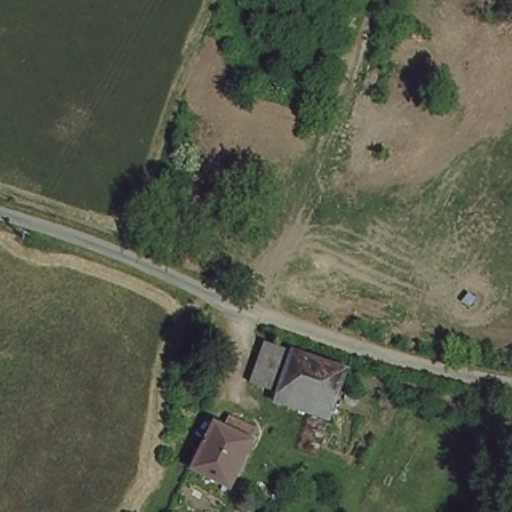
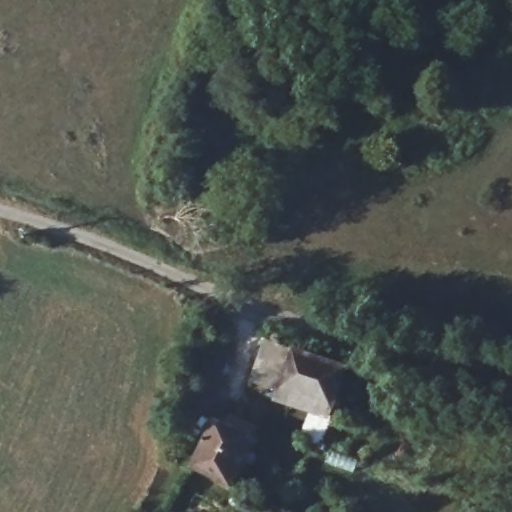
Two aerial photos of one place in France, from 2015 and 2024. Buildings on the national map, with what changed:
unchanged [(397,22),(381,57),(367,51),(383,16),(397,22)]
unchanged [(253,381),(265,342),(290,350),(277,388),(253,381)]
unchanged [(333,407),(280,390),(293,351),(346,367),(333,407)]
unchanged [(198,460),(220,416),(255,434),(232,477),(198,460)]

